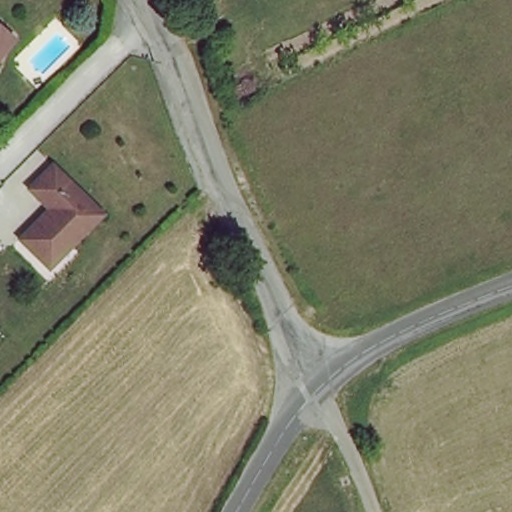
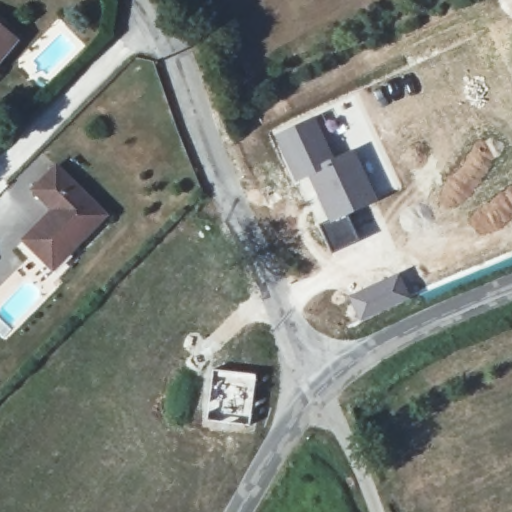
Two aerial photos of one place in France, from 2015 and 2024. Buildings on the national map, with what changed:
unchanged [(13,41),(0,56),(0,30),(13,41)]
new [(332,253),(319,226),(329,221),(308,177),(296,182),(274,136),(313,116),(334,159),(353,150),(376,202),(345,218),(357,242),(332,253)]
unchanged [(106,214),(69,251),(62,244),(47,261),(24,238),(54,208),(34,188),(57,164),(106,214)]
new [(212,369),(256,374),(250,424),(206,420),(212,369)]

